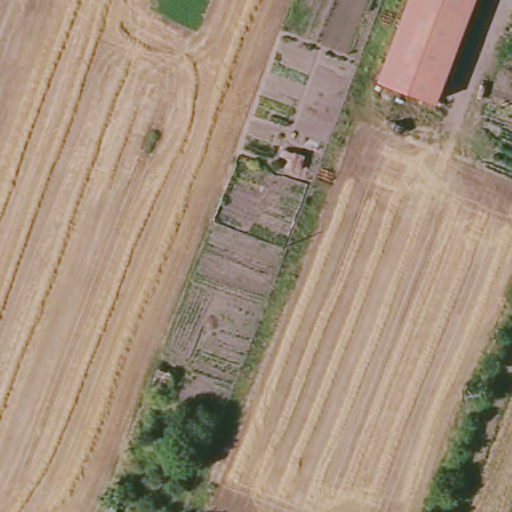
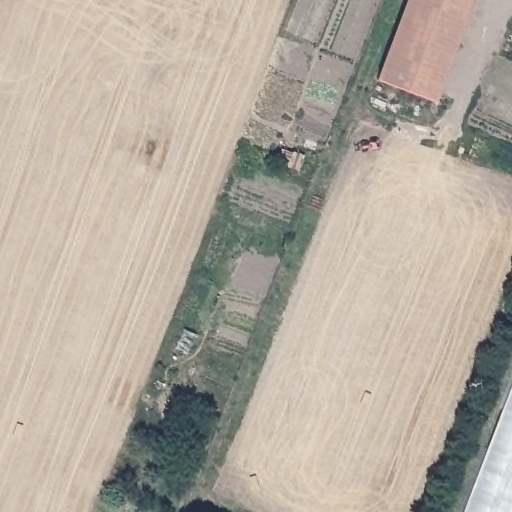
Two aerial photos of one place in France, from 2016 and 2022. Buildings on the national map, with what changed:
unchanged [(434,101),(377,79),(407,0),(473,0),(434,101)]
new [(462,512),(512,382),(512,512),(462,512)]
unchanged [(119,512),(105,512),(108,505),(120,509),(119,512)]

